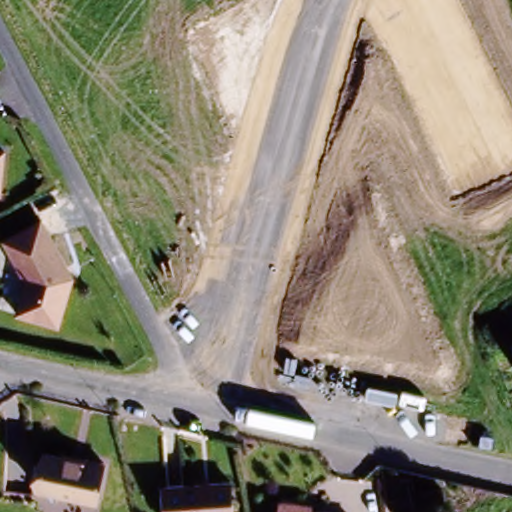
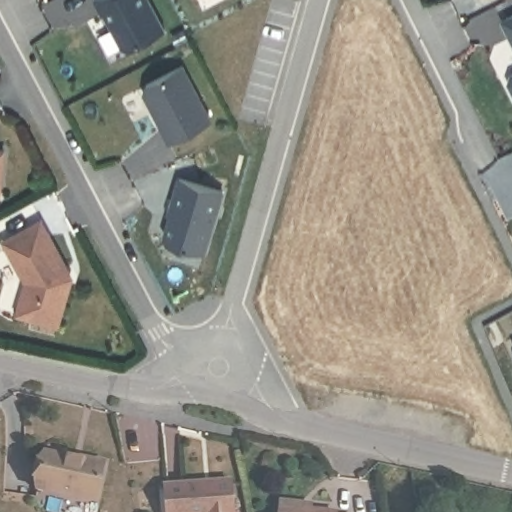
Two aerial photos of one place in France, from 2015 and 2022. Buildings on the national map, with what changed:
new [(164,30),(128,49),(121,47),(104,13),(102,14),(94,0),(148,0),(164,30)]
new [(512,15),(512,39),(511,39),(502,20),(512,15)]
new [(146,84),(182,66),(211,120),(169,142),(161,127),(166,125),(146,87),(146,84)]
new [(508,82),(511,74),(512,74),(512,90),(508,82)]
unchanged [(0,191),(0,148),(9,149),(8,192),(0,191)]
new [(226,191),(206,253),(166,242),(162,230),(178,177),(226,191)]
unchanged [(50,214),(81,274),(63,327),(22,314),(31,280),(7,238),(50,214)]
unchanged [(512,344),(512,348),(511,344),(512,344)]
unchanged [(95,502),(37,489),(45,452),(84,461),(85,458),(104,462),(95,502)]
unchanged [(166,512),(164,486),(199,483),(200,485),(209,484),(209,482),(231,480),(233,512),(166,512)]
unchanged [(301,504),(311,505),(311,509),(331,512),(279,512),(280,501),(301,504)]

